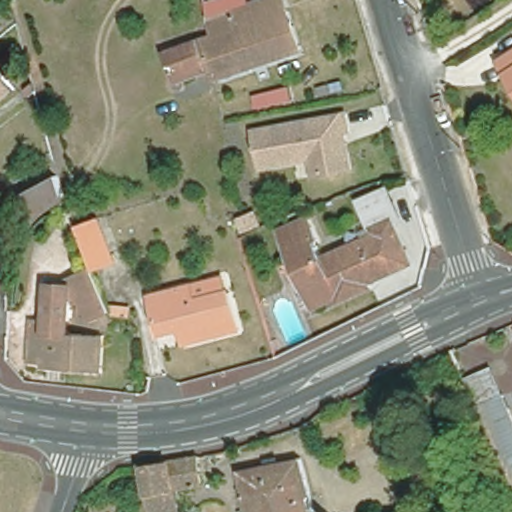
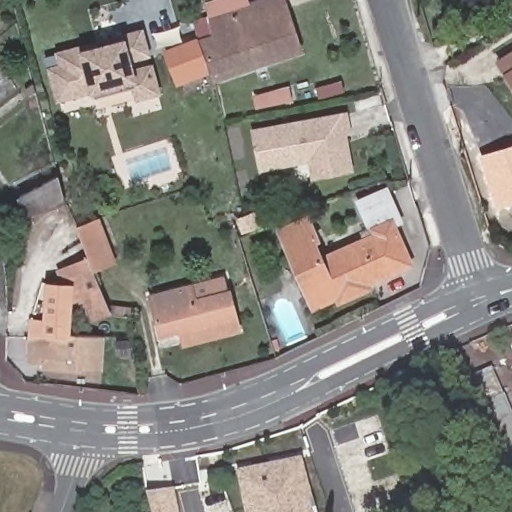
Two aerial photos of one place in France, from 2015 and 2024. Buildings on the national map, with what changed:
unchanged [(274,6),(292,60),(200,89),(196,77),(185,46),(199,41),(198,32),(197,29),(274,6)]
new [(134,102),(130,89),(93,99),(91,92),(56,102),(46,67),(58,64),(54,51),(143,27),(161,95),(134,102)]
unchanged [(196,77),(164,90),(153,57),(185,46),(196,77)]
unchanged [(500,56),(512,48),(512,74),(500,56)]
unchanged [(263,127),(342,111),(346,127),(341,128),(349,167),(323,172),(318,143),(269,152),(253,156),(248,130),(263,127)]
new [(496,209),(479,155),(512,144),(512,204),(496,209)]
unchanged [(68,204),(20,236),(5,212),(53,180),(68,204)]
unchanged [(300,242),(306,257),(361,234),(360,231),(358,232),(345,202),(373,190),(387,222),(378,226),(394,265),(350,285),(351,290),(321,302),(319,297),(296,307),(292,298),(268,239),(265,232),(273,227),(294,220),(297,226),(303,240),(300,242)]
unchanged [(93,221),(109,258),(88,266),(72,226),(93,221)]
unchanged [(87,322),(77,298),(70,301),(68,333),(98,335),(95,372),(41,368),(41,365),(26,363),(28,336),(29,321),(44,322),(46,287),(65,289),(72,286),(70,282),(91,272),(108,313),(87,322)]
unchanged [(178,331),(157,337),(148,298),(187,287),(223,277),(227,293),(236,330),(193,342),(183,344),(178,331)]
unchanged [(477,403),(468,381),(494,370),(504,393),(512,413),(512,489),(477,403)]
unchanged [(195,487),(167,491),(172,512),(145,512),(140,494),(136,467),(189,458),(195,487)]
unchanged [(299,461),(314,512),(245,512),(236,472),(299,461)]

